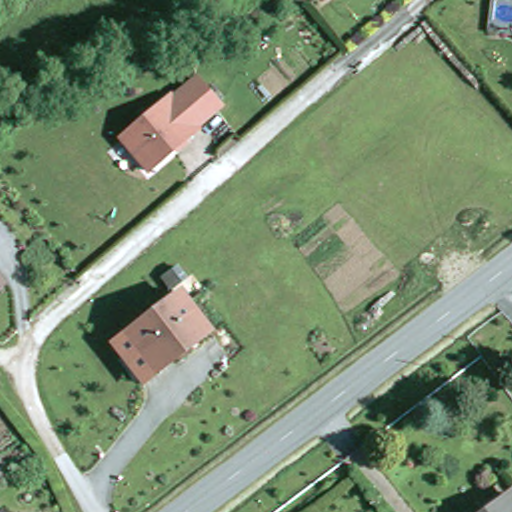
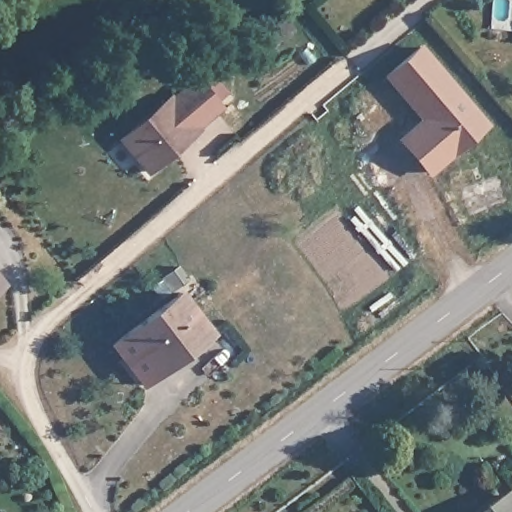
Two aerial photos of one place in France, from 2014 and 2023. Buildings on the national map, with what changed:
new [(490,122),(428,175),(397,139),(420,118),(382,74),(421,41),(490,122)]
unchanged [(195,125),(180,107),(173,100),(140,125),(137,120),(172,91),(175,92),(196,76),(225,109),(200,131),(195,125)]
unchanged [(140,125),(173,100),(200,131),(168,159),(140,125)]
unchanged [(150,174),(121,140),(140,125),(168,159),(150,174)]
unchanged [(218,323),(150,375),(120,335),(188,283),(218,323)]
unchanged [(512,500),(512,512),(486,512),(508,495),(512,500)]

